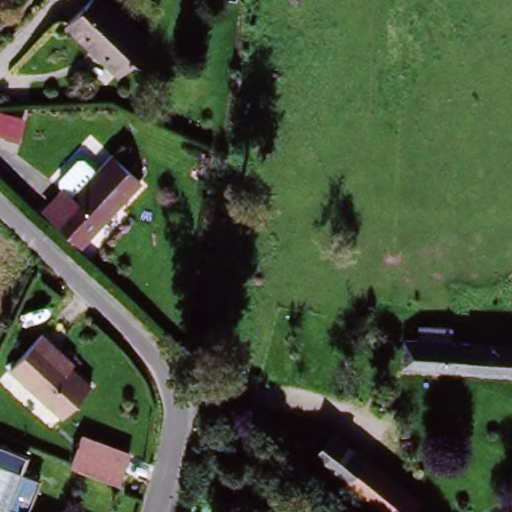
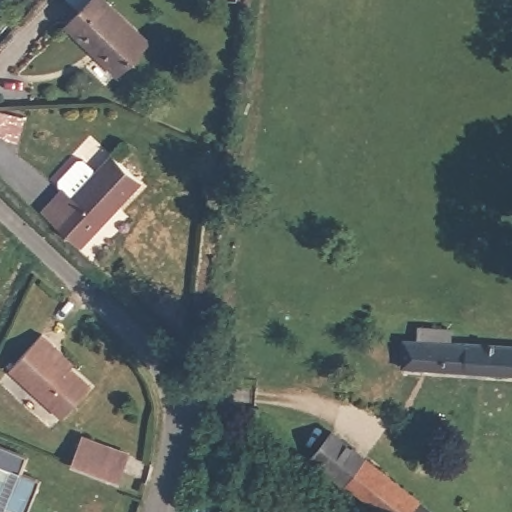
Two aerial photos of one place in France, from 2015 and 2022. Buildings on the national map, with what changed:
unchanged [(65,31),(92,0),(96,0),(149,46),(125,74),(117,82),(90,55),(65,31)]
unchanged [(43,213),(60,195),(68,203),(110,158),(139,184),(120,207),(83,249),(75,243),(43,213)]
unchanged [(405,344),(420,346),(420,329),(449,332),(447,348),(512,354),(512,377),(405,367),(405,344)]
unchanged [(51,353),(84,385),(55,415),(10,373),(47,335),(58,346),(51,353)]
unchanged [(83,434),(130,452),(120,482),(72,466),(83,434)]
unchanged [(330,438),(368,469),(352,489),(312,457),(330,438)]
unchanged [(22,473),(0,464),(0,446),(27,457),(22,473)]
unchanged [(421,512),(381,512),(352,489),(368,469),(421,512)]

